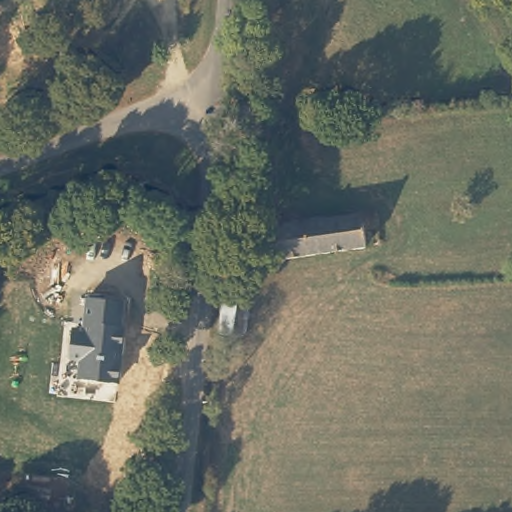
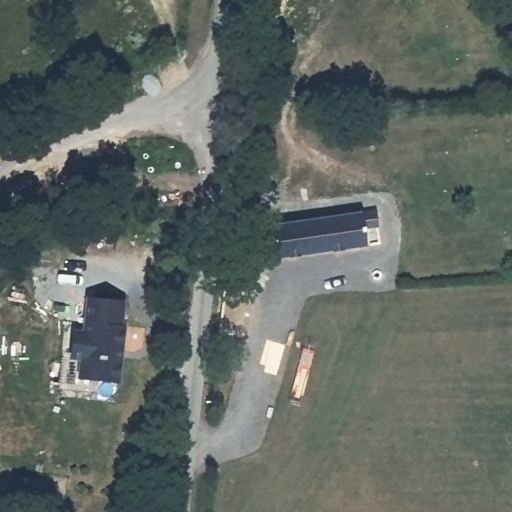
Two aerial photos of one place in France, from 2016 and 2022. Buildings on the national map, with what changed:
unchanged [(380,221),(365,224),(367,240),(276,253),(272,222),(314,216),(377,208),(380,221)]
unchanged [(251,287),(246,330),(220,327),(224,284),(251,287)]
unchanged [(124,329),(117,374),(75,368),(80,323),(124,329)]

